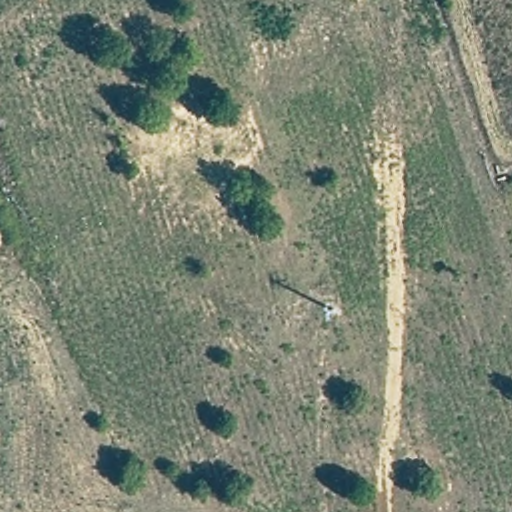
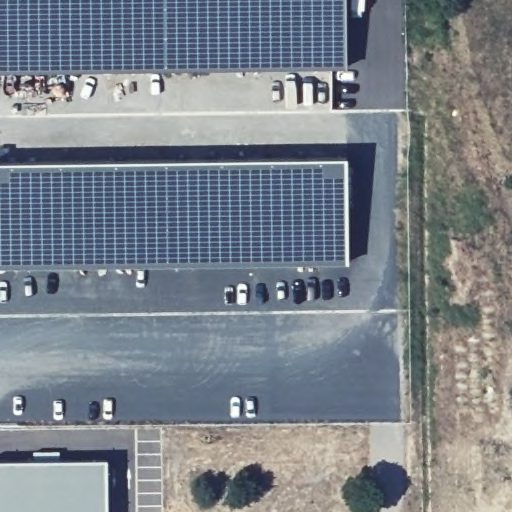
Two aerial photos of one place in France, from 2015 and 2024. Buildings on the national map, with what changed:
new [(0,72),(0,0),(345,0),(346,68),(0,72)]
new [(346,263),(0,267),(0,162),(345,158),(346,263)]
new [(39,451),(64,451),(65,459),(112,458),(113,512),(0,512),(0,459),(39,459),(39,451)]

